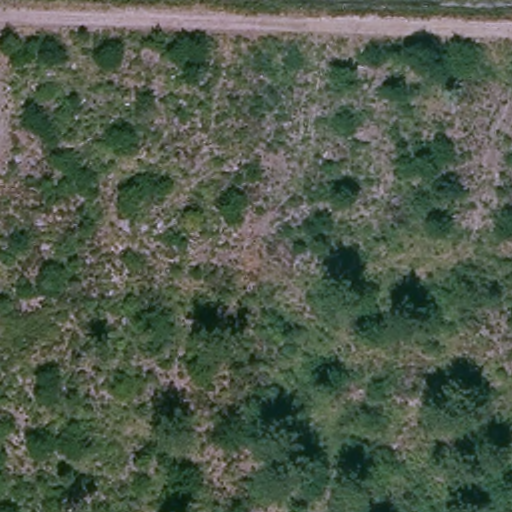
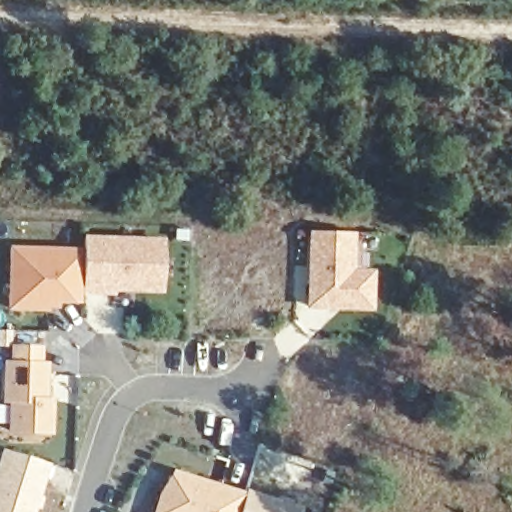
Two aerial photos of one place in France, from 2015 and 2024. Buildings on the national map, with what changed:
new [(308,230),(354,231),(354,269),(374,271),(373,310),(306,308),(308,230)]
new [(164,238),(162,293),(115,291),(115,296),(80,296),(80,302),(59,303),(58,309),(48,309),(48,312),(7,310),(9,246),(82,248),(83,235),(164,238)]
new [(47,397),(52,398),(52,435),(7,433),(8,403),(1,402),(2,360),(9,361),(10,345),(42,345),(42,362),(47,362),(47,397)]
new [(45,478),(34,512),(0,512),(0,448),(52,466),(45,478)]
new [(173,469),(245,493),(246,489),(302,507),(301,512),(153,512),(158,493),(173,469)]

